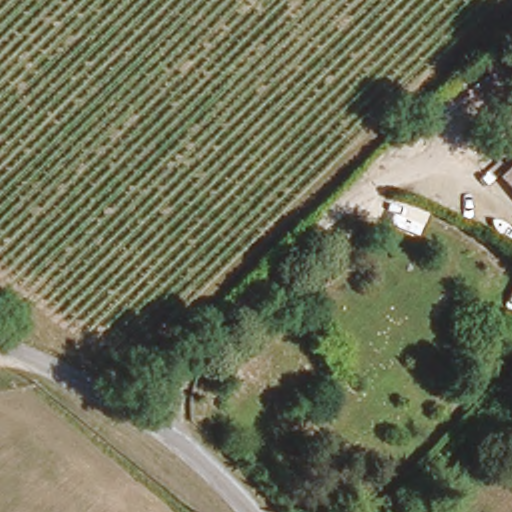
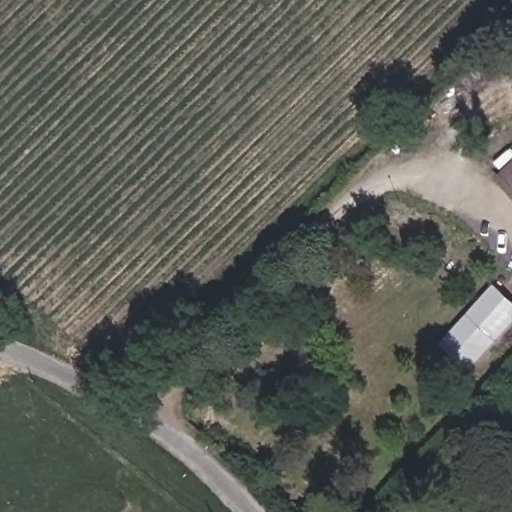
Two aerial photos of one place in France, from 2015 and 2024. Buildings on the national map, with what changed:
unchanged [(512,165),(512,193),(499,178),(512,165)]
new [(441,344),(495,285),(512,301),(512,323),(470,370),(441,344)]

